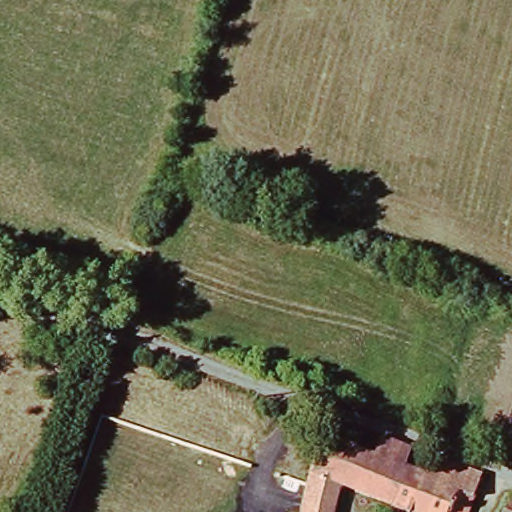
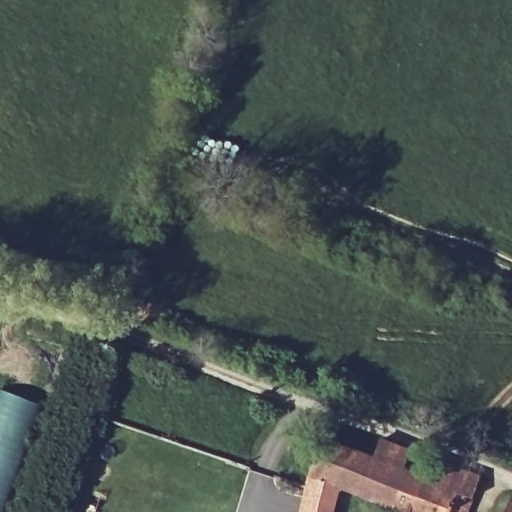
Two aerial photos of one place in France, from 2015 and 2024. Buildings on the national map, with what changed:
new [(8,471),(4,499),(0,511),(0,404),(5,391),(41,403),(17,474),(8,471)]
unchanged [(467,512),(402,512),(340,486),(334,512),(300,512),(307,490),(320,436),(375,458),(382,439),(409,450),(402,469),(423,478),(473,497),(467,512)]
unchanged [(431,457),(480,477),(473,497),(423,478),(431,457)]
unchanged [(512,500),(512,512),(505,512),(511,500),(512,500)]

